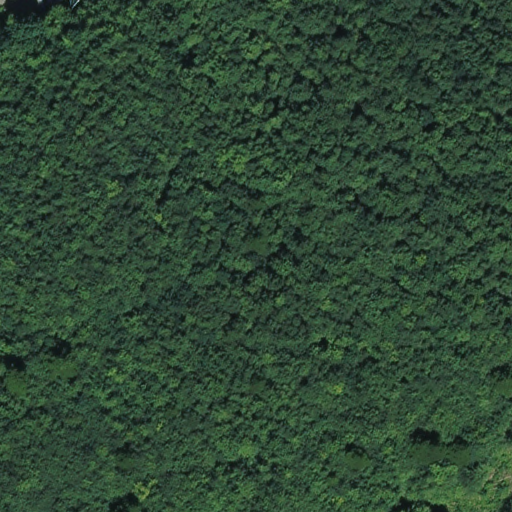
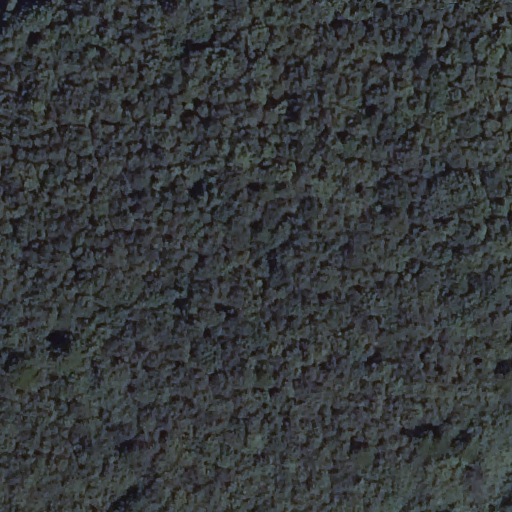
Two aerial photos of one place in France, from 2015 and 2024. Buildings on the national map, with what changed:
unchanged [(55,12),(0,27),(0,0),(51,0),(55,12)]

